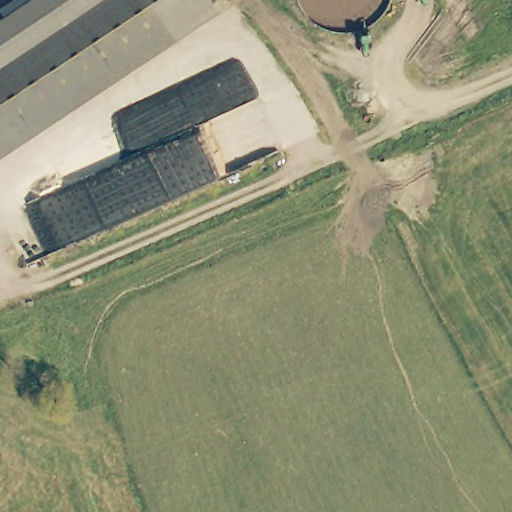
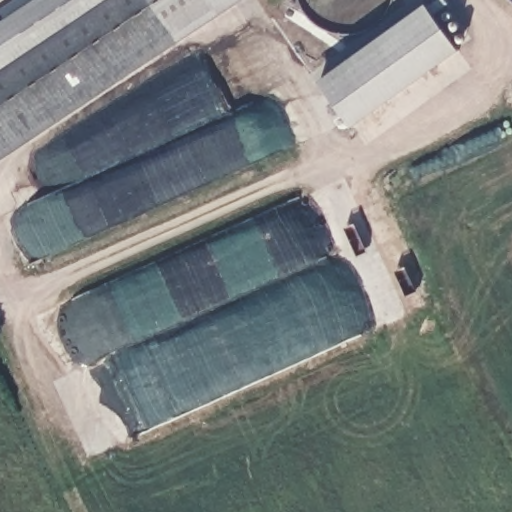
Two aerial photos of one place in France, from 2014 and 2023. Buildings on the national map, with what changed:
new [(0,34),(0,21),(5,17),(0,11),(16,0),(49,0),(0,34)]
unchanged [(49,0),(146,0),(169,33),(170,35),(0,160),(0,34),(49,0)]
unchanged [(214,3),(169,33),(146,0),(212,0),(214,3)]
new [(221,13),(214,3),(212,0),(241,0),(221,13)]
new [(351,126),(317,81),(425,2),(460,49),(351,126)]

